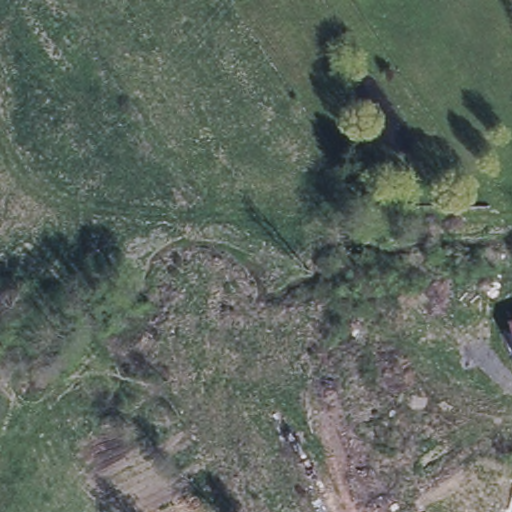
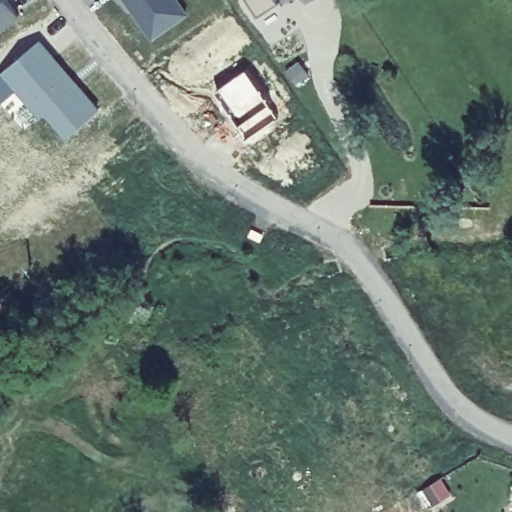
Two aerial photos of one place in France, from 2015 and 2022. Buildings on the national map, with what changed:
new [(0,30),(0,0),(15,0),(24,13),(0,30)]
new [(189,17),(151,43),(122,0),(177,0),(189,17)]
new [(277,6),(256,19),(244,0),(273,0),(277,6)]
new [(98,110),(65,143),(42,116),(37,121),(13,93),(0,105),(0,75),(38,44),(98,110)]
new [(243,72),(277,121),(242,142),(212,96),(243,72)]
new [(440,480),(450,496),(431,507),(422,490),(440,480)]

